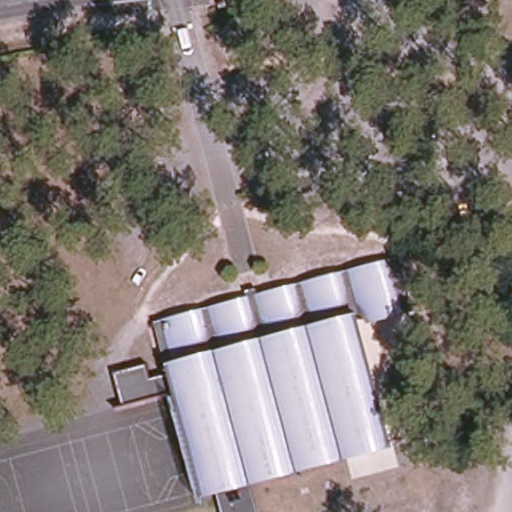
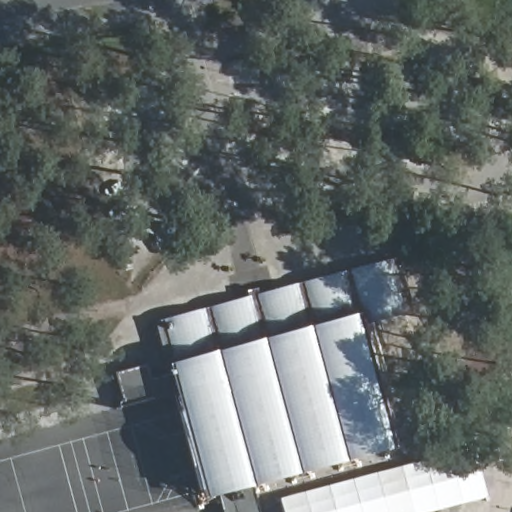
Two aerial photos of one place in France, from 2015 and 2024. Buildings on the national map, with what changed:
unchanged [(245,302),(265,297),(401,261),(413,306),(363,319),(395,442),(315,463),(295,468),(250,480),(216,489),(203,493),(182,413),(187,411),(165,323),(245,302)]
unchanged [(179,391),(118,405),(115,394),(126,371),(147,364),(150,378),(175,373),(179,391)]
new [(486,496),(428,512),(285,512),(281,499),(473,448),(486,496)]
unchanged [(250,480),(258,512),(222,512),(216,489),(250,480)]

